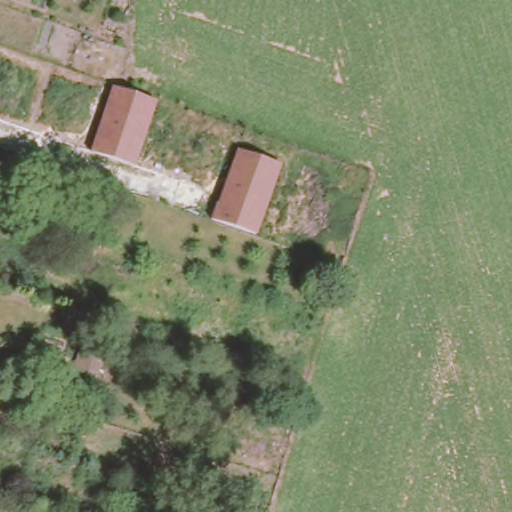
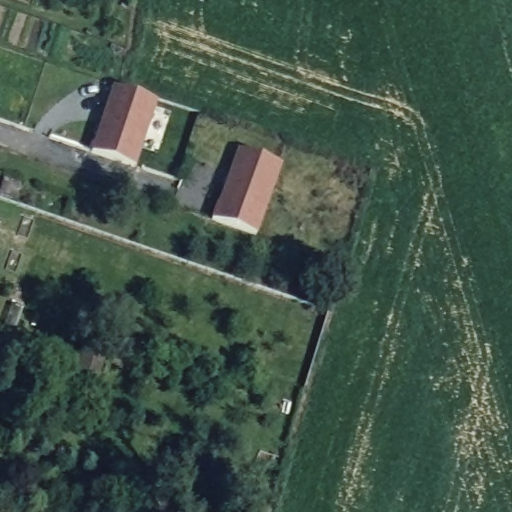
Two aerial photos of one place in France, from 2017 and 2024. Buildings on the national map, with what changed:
unchanged [(91,151),(113,86),(157,101),(135,166),(91,151)]
unchanged [(212,217),(217,204),(218,204),(238,150),(282,164),(258,234),(212,217)]
unchanged [(5,179),(22,184),(17,200),(0,195),(5,179)]
unchanged [(78,369),(85,345),(95,349),(88,374),(78,369)]

